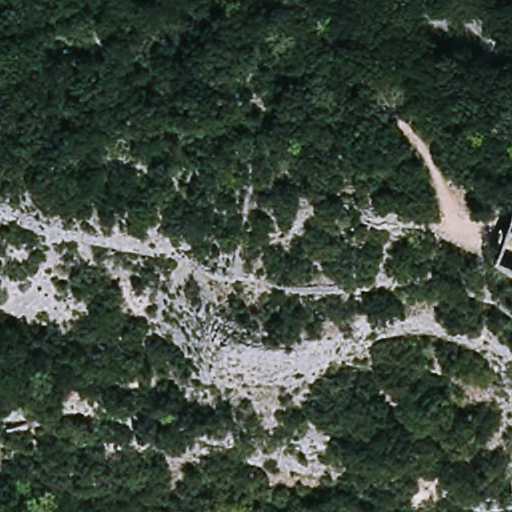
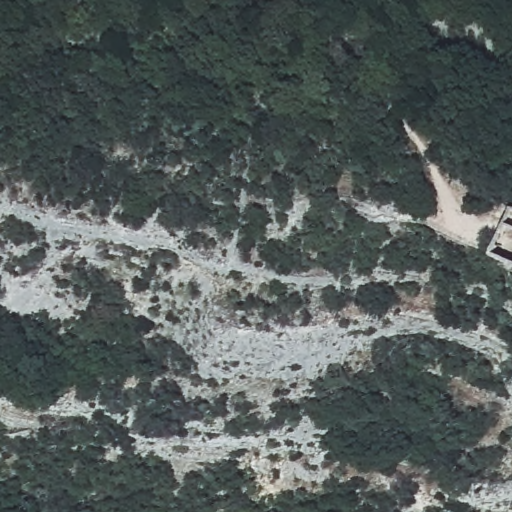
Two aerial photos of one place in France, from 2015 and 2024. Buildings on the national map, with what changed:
[]

